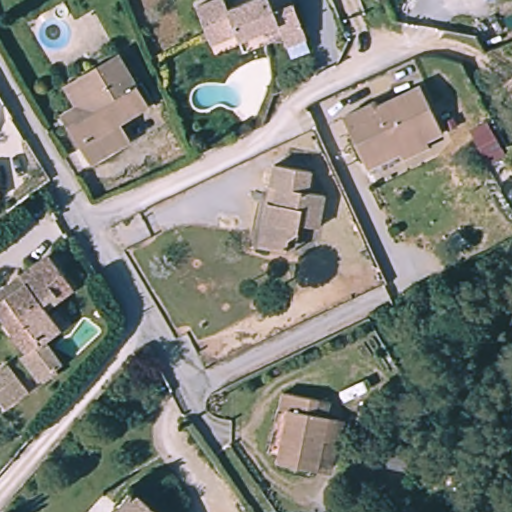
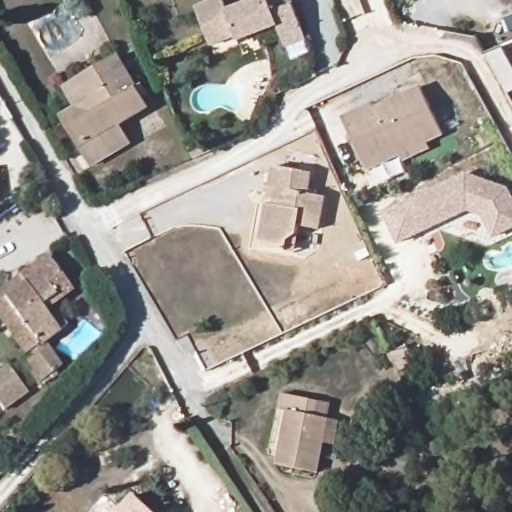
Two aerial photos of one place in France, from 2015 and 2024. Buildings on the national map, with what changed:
unchanged [(290,49),(281,28),(241,44),(238,37),(217,45),(203,11),(229,0),(231,0),(237,15),(264,5),(261,0),(297,0),(314,40),(290,49)]
unchanged [(150,115),(116,129),(128,154),(88,172),(68,128),(60,113),(80,105),(70,81),(85,75),(123,56),(150,115)]
unchanged [(446,139),(369,172),(344,116),(378,102),(381,108),(425,90),(446,139)]
unchanged [(310,172),(305,195),(321,198),(314,229),(298,225),(291,251),(257,243),(275,163),(310,172)]
unchanged [(0,184),(0,168),(7,180),(0,184)]
new [(507,188),(512,200),(512,226),(493,236),(482,214),(465,208),(401,243),(383,213),(465,173),(507,188)]
unchanged [(46,308),(63,328),(46,342),(66,365),(45,383),(25,360),(32,354),(0,315),(0,293),(48,254),(75,286),(46,308)]
unchanged [(315,401),(311,422),(335,425),(324,476),(278,466),(288,415),(277,413),(281,394),(315,401)]
unchanged [(151,512),(122,512),(123,512),(116,507),(128,492),(151,512)]

